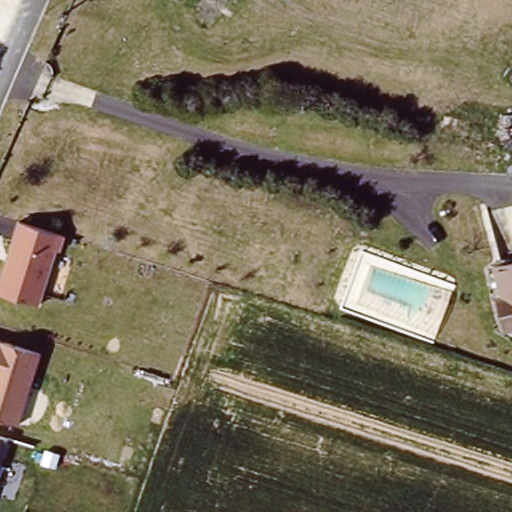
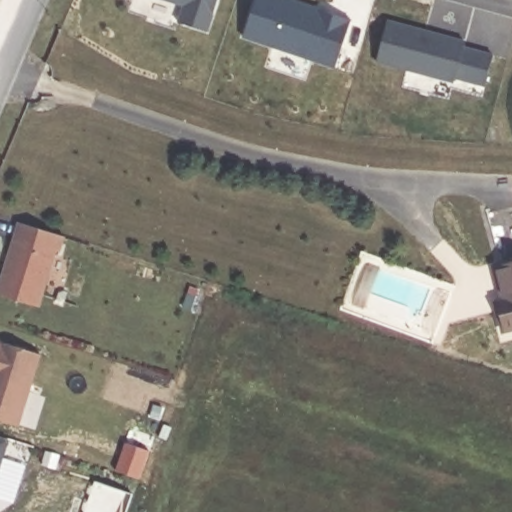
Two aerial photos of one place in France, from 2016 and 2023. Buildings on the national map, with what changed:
new [(210,33),(181,25),(182,5),(166,0),(221,0),(210,33)]
new [(337,69),(245,37),(257,0),(294,0),(355,20),(337,69)]
new [(488,87),(457,79),(457,84),(380,62),(390,20),(468,41),(467,47),(495,55),(488,87)]
unchanged [(63,233),(38,305),(0,291),(0,273),(21,215),(63,233)]
unchanged [(498,272),(512,269),(512,332),(504,328),(501,315),(499,306),(506,305),(498,272)]
unchanged [(0,419),(0,341),(41,353),(18,425),(0,419)]
unchanged [(0,463),(0,433),(10,435),(0,463)]

